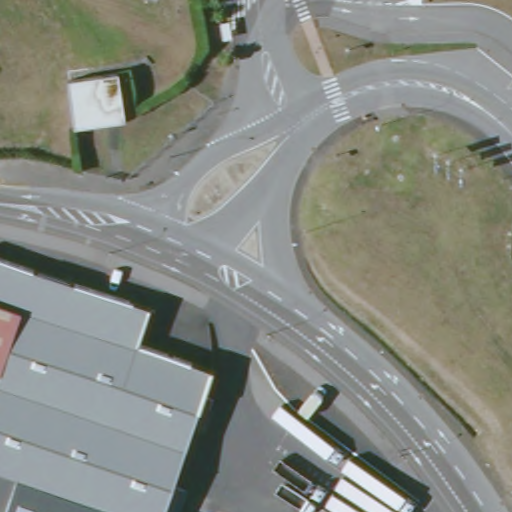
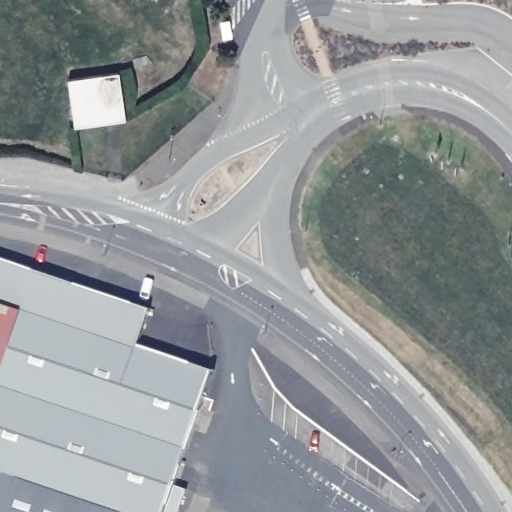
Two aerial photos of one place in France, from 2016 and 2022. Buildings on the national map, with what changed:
unchanged [(127,119),(77,127),(70,80),(120,72),(127,119)]
unchanged [(0,304),(0,262),(147,312),(135,349),(0,304)]
unchanged [(135,349),(212,373),(164,512),(114,512),(0,477),(0,304),(135,349)]
unchanged [(0,512),(0,477),(114,512),(0,512)]

